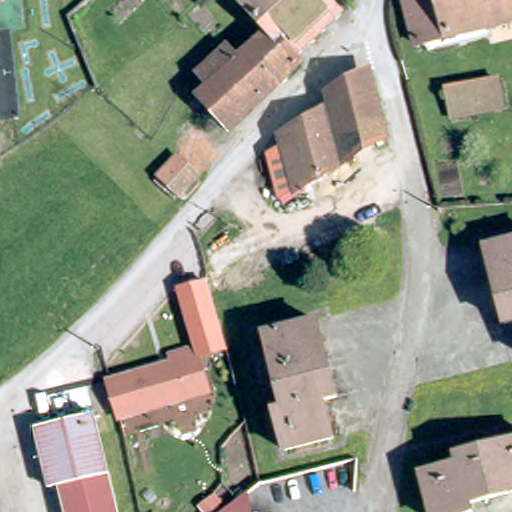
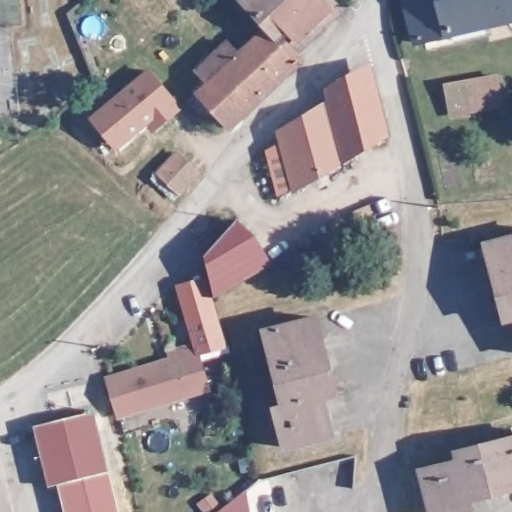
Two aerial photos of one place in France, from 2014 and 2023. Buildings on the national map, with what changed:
unchanged [(343,12),(298,55),(270,26),(246,0),(332,0),(343,12)]
unchanged [(404,0),(437,0),(445,40),(415,47),(404,0)]
unchanged [(512,24),(445,40),(437,0),(512,0),(512,24)]
unchanged [(298,55),(304,61),(230,129),(197,95),(209,84),(199,74),(231,43),(241,53),(270,26),(298,55)]
new [(182,109),(151,134),(145,126),(115,150),(88,119),(148,67),(182,109)]
unchanged [(447,86),(500,79),(507,116),(456,126),(447,86)]
unchanged [(373,82),(389,139),(299,192),(283,202),(271,153),(278,150),(284,146),(283,136),(373,82)]
unchanged [(181,199),(159,178),(179,160),(201,179),(181,199)]
new [(273,263),(213,298),(206,273),(201,255),(236,219),(273,263)]
unchanged [(486,249),(512,243),(512,323),(504,325),(486,249)]
unchanged [(166,357),(164,350),(189,342),(173,284),(206,273),(226,346),(199,354),(210,391),(114,420),(103,376),(166,357)]
unchanged [(269,409),(276,407),(261,334),(311,322),(329,397),(318,400),(326,438),(278,448),(269,409)]
unchanged [(51,490),(38,431),(97,417),(118,512),(67,512),(61,487),(51,490)]
unchanged [(468,512),(466,512),(428,512),(418,472),(454,463),(452,455),(512,440),(512,491),(466,503),(468,512)]
unchanged [(255,512),(227,512),(253,495),(255,512)]

